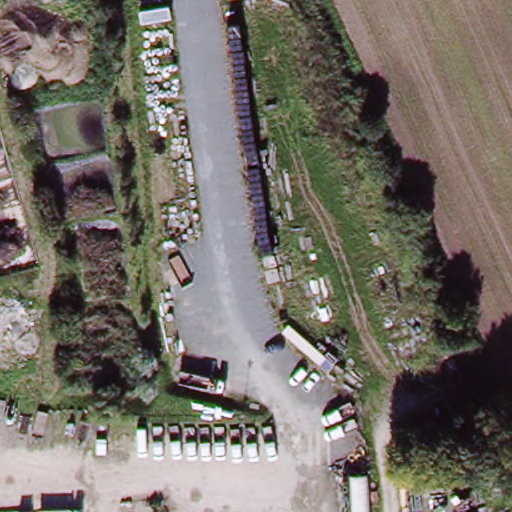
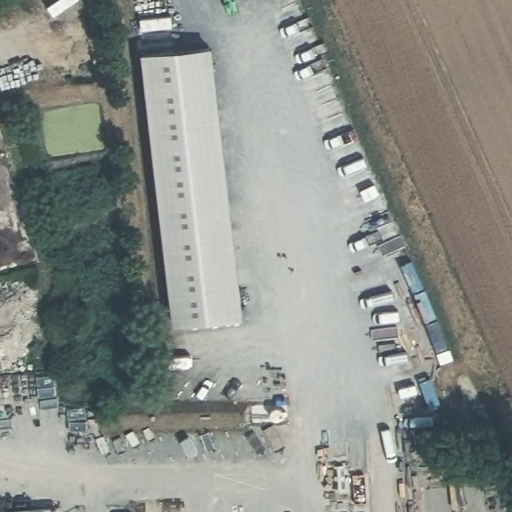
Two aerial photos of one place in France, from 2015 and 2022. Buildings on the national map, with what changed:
new [(141,52),(211,46),(242,318),(172,325),(141,52)]

